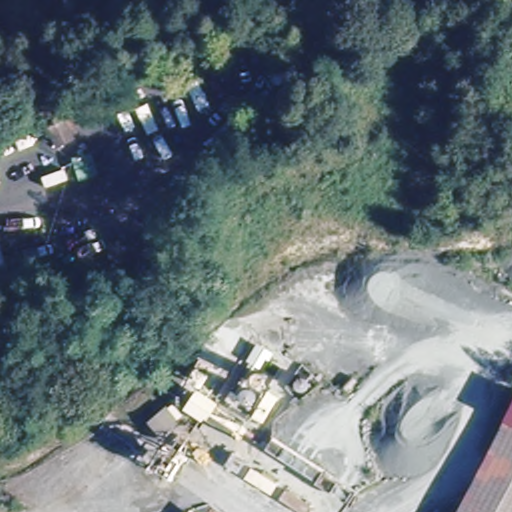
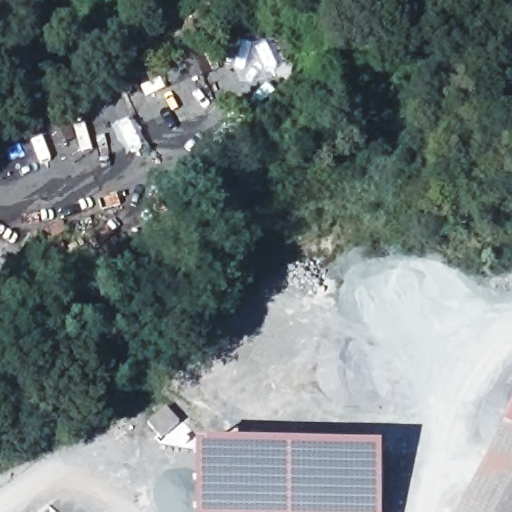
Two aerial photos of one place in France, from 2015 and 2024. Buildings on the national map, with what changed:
unchanged [(149,430),(138,417),(159,400),(170,414),(149,430)]
unchanged [(512,512),(455,512),(512,415),(512,512)]
new [(200,448),(236,447),(251,448),(384,447),(383,512),(198,512),(200,448)]

